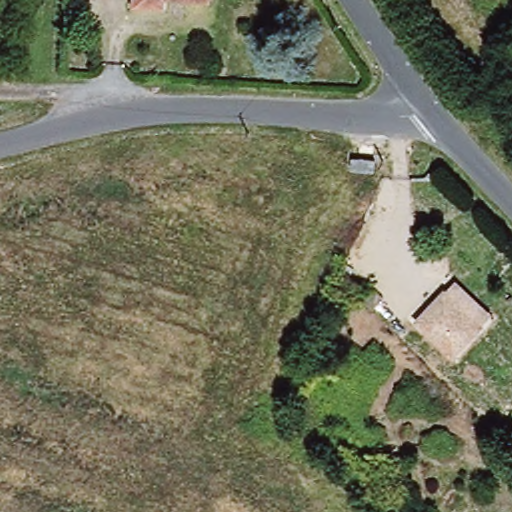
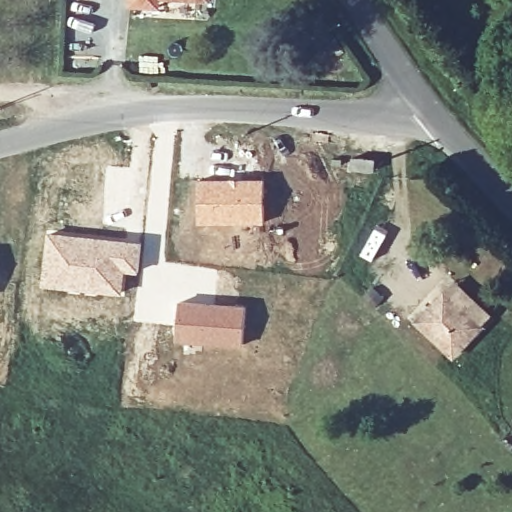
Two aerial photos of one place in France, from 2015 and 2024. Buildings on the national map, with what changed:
unchanged [(149,5),(127,4),(127,0),(150,0),(149,5)]
unchanged [(382,160),(364,159),(364,144),(384,146),(382,160)]
new [(265,178),(265,224),(196,224),(195,180),(265,178)]
new [(48,232),(142,241),(139,273),(126,271),(122,293),(42,285),(48,232)]
unchanged [(451,360),(417,325),(445,297),(479,332),(451,360)]
new [(179,300),(246,305),(242,350),(174,343),(179,300)]

